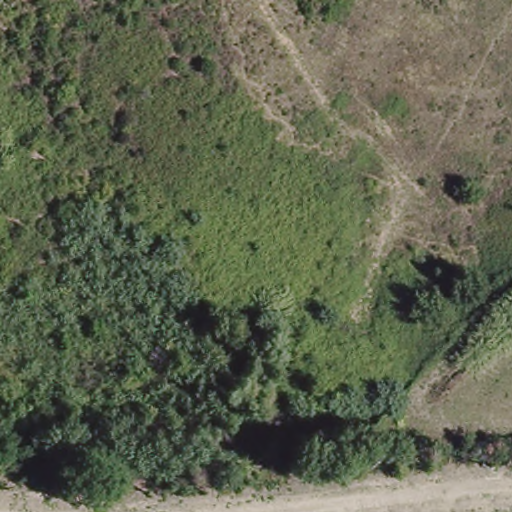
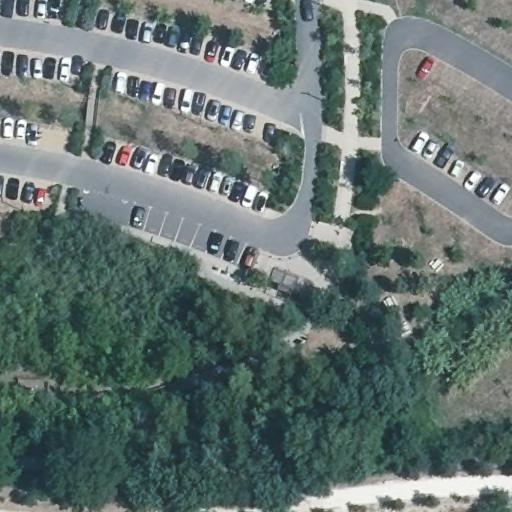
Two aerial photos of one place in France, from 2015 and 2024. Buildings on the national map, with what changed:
[]

